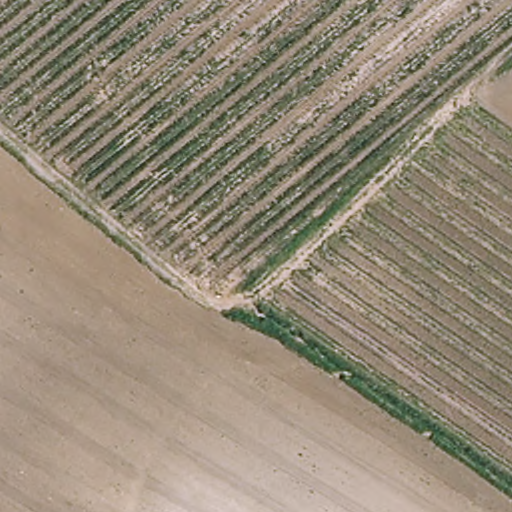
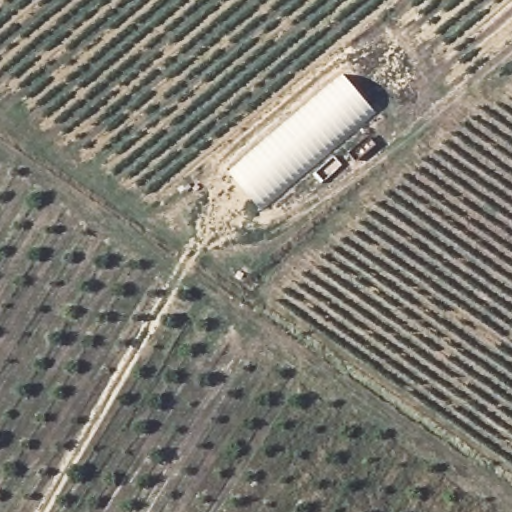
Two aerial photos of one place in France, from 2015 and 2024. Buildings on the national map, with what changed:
new [(373,111),(258,210),(230,175),(345,78),(373,111)]

